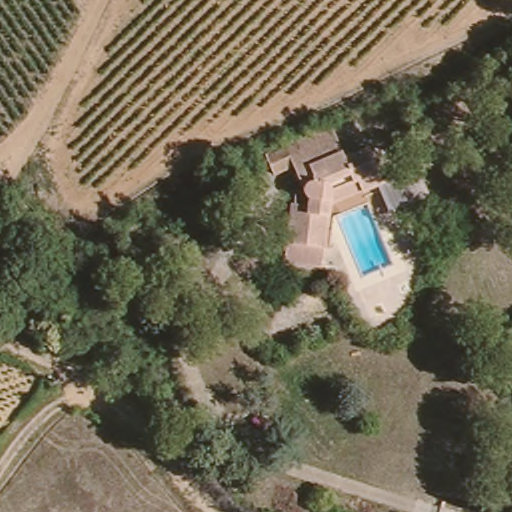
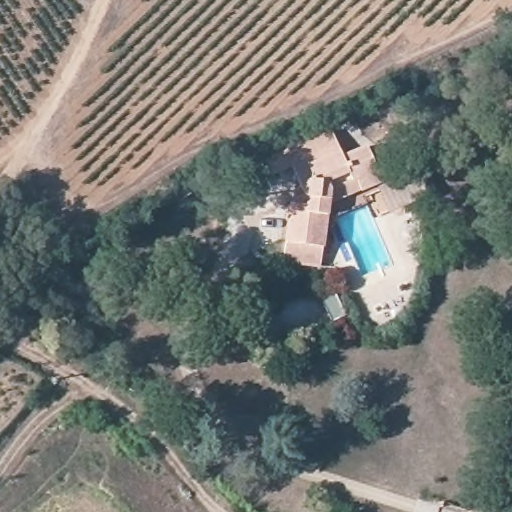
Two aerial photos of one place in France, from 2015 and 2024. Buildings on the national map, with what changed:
unchanged [(307,195),(283,147),(315,135),(334,126),(347,157),(367,150),(378,172),(382,181),(360,188),(361,192),(363,204),(328,221),(319,266),(283,260),(290,208),(291,194),(307,195)]
unchanged [(382,181),(378,172),(416,163),(423,196),(377,211),(368,190),(361,192),(360,188),(382,181)]

